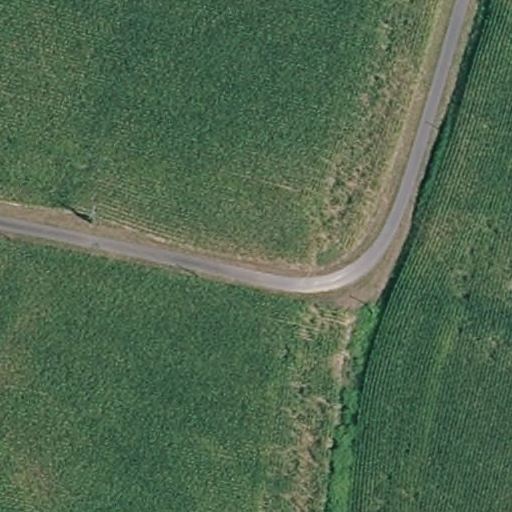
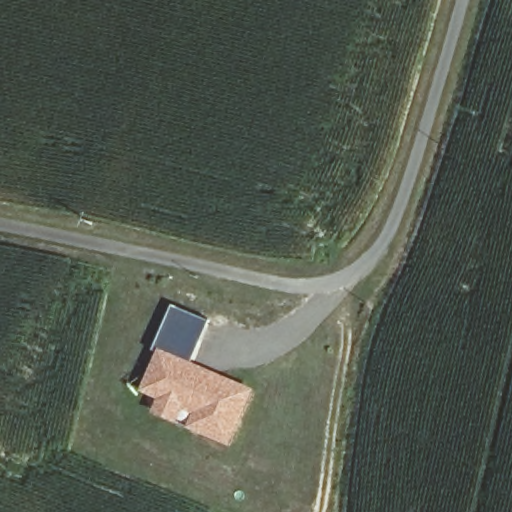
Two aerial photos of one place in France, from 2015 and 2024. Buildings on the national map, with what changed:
new [(174,307),(210,322),(192,363),(161,350),(159,355),(154,352),(174,307)]
new [(189,431),(195,415),(184,410),(177,426),(153,415),(159,401),(142,393),(161,350),(256,391),(231,446),(189,431)]

